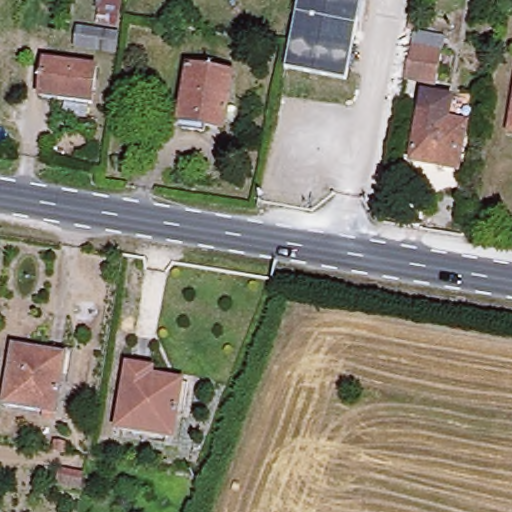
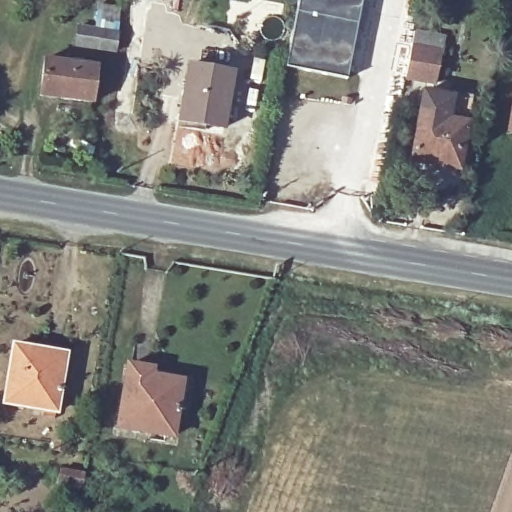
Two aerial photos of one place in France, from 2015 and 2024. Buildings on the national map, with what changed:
unchanged [(345,76),(284,68),(297,0),(360,0),(345,76)]
unchanged [(75,48),(77,27),(120,32),(116,55),(75,48)]
unchanged [(412,39),(439,42),(435,73),(406,69),(412,39)]
unchanged [(87,108),(36,102),(41,64),(93,70),(87,108)]
unchanged [(220,128),(180,121),(191,65),(232,71),(220,128)]
unchanged [(512,83),(512,132),(507,131),(512,83)]
unchanged [(467,97),(457,167),(411,160),(420,90),(467,97)]
unchanged [(68,357),(57,414),(5,405),(15,347),(68,357)]
unchanged [(177,434),(122,425),(129,365),(158,370),(157,377),(185,382),(177,434)]

